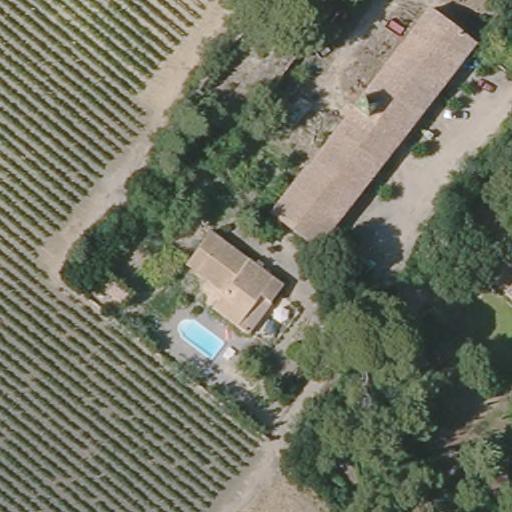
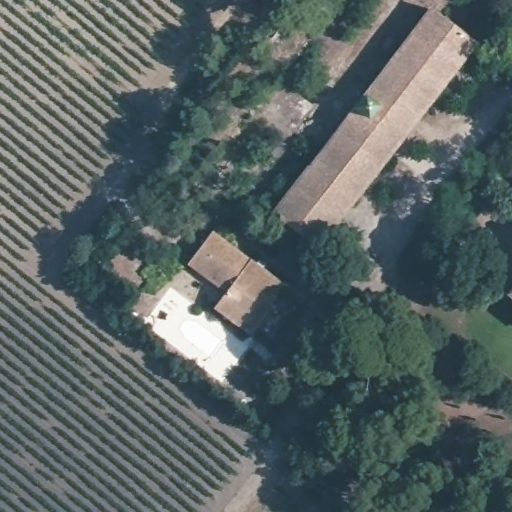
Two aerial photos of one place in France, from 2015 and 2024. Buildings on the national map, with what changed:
unchanged [(321,249),(276,214),(435,8),(481,43),(321,249)]
unchanged [(243,327),(217,308),(229,292),(192,265),(216,231),(290,285),(277,303),(253,335),(243,327)]
unchanged [(374,269),(362,285),(347,273),(359,258),(374,269)]

